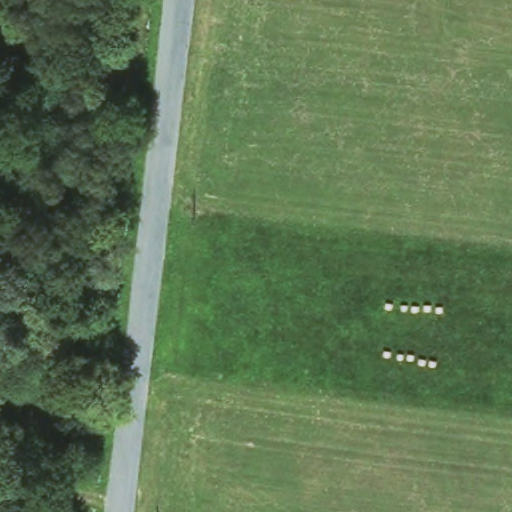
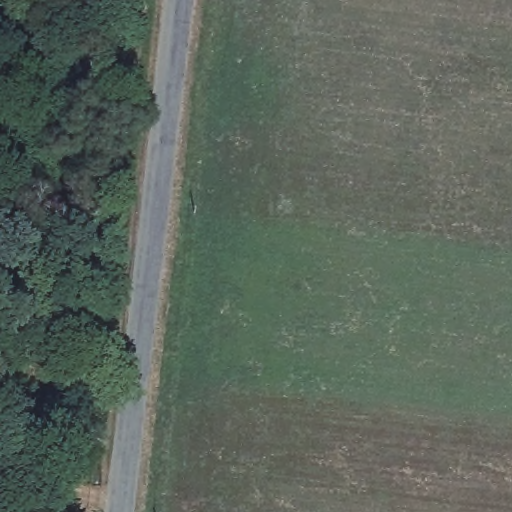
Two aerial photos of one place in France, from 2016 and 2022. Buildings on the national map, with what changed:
[]

